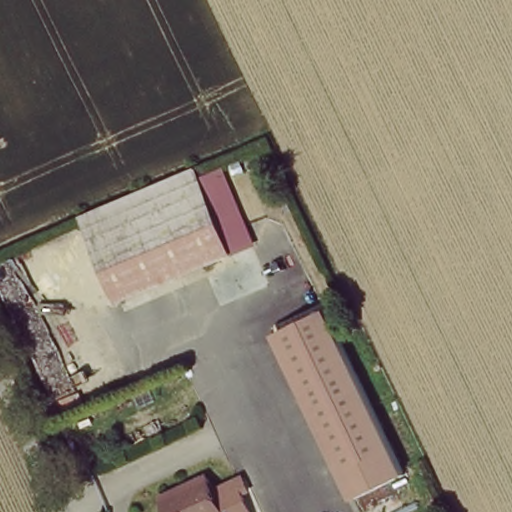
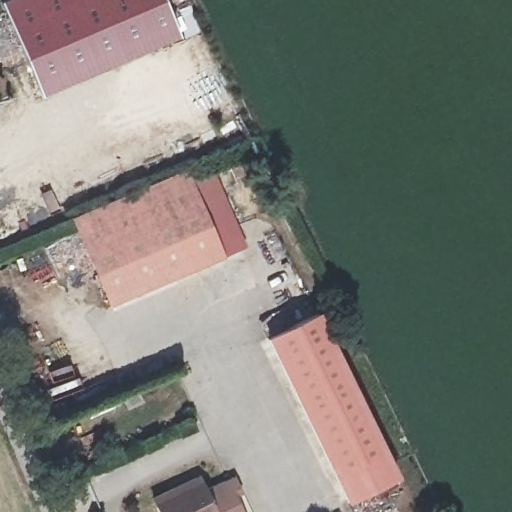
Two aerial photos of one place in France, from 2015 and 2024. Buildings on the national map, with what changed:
new [(41,94),(3,0),(164,0),(179,35),(41,94)]
unchanged [(103,302),(68,216),(179,169),(218,255),(103,302)]
unchanged [(320,314),(399,479),(348,499),(270,338),(273,336),(320,314)]
unchanged [(154,496),(198,476),(216,512),(161,512),(154,496)]

